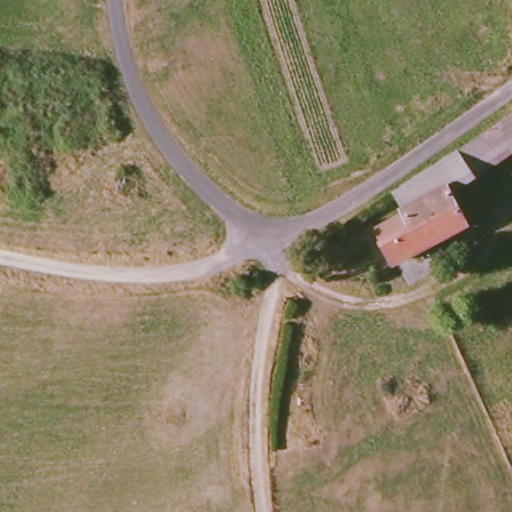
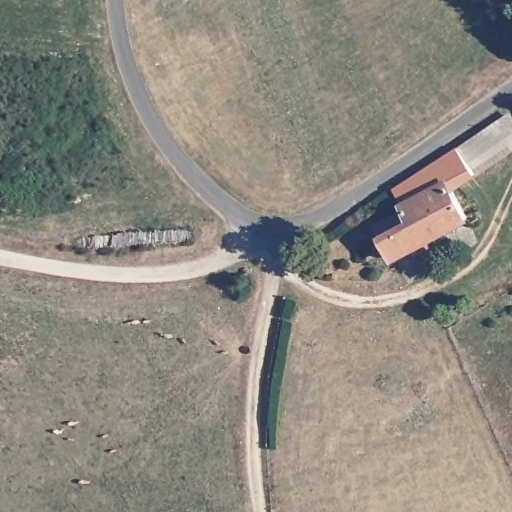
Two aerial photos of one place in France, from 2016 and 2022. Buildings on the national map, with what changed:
unchanged [(394,189),(507,106),(512,115),(512,154),(457,194),(447,179),(404,207),(394,189)]
unchanged [(392,243),(418,227),(404,207),(447,179),(457,194),(472,220),(430,247),(404,265),(392,243)]

